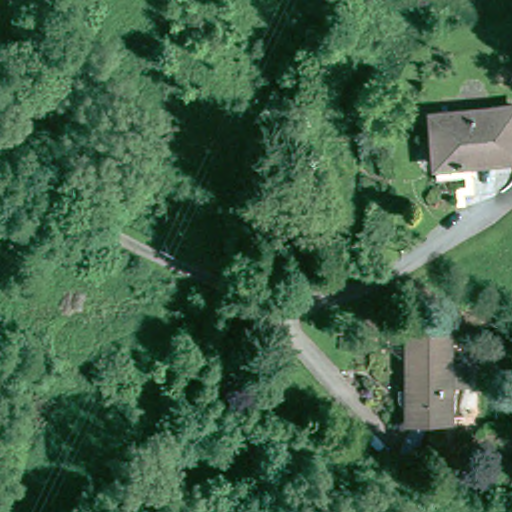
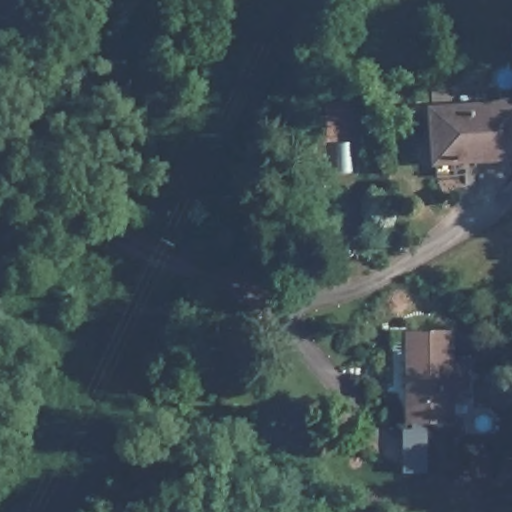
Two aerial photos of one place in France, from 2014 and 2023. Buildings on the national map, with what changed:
unchanged [(440,113),(512,110),(512,160),(443,164),(440,113)]
unchanged [(413,335),(456,338),(452,426),(408,424),(413,335)]

